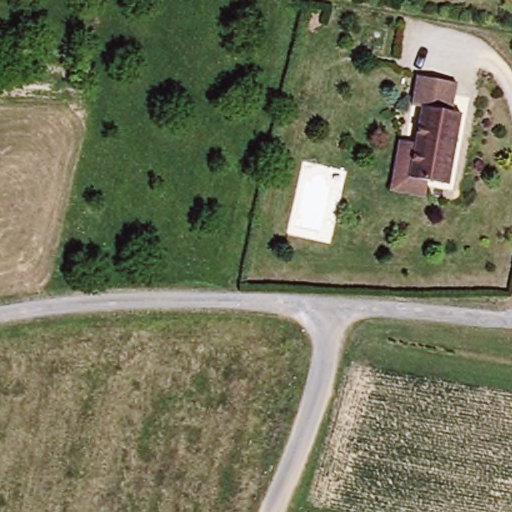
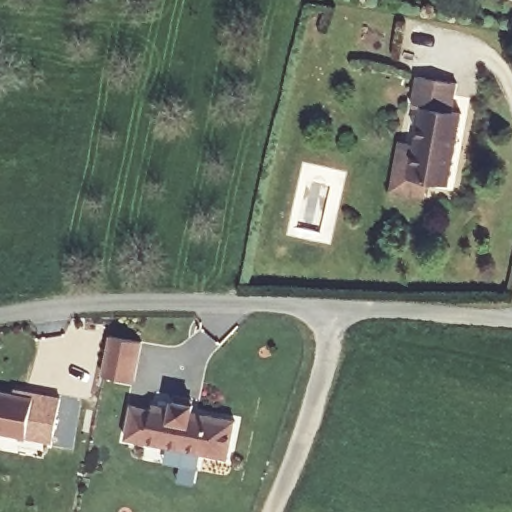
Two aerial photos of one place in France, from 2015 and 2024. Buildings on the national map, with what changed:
unchanged [(394,194),(402,146),(417,149),(424,111),(415,110),(420,80),(459,87),(454,116),(464,117),(451,189),(428,185),(426,200),(394,194)]
new [(143,340),(136,381),(103,376),(110,335),(143,340)]
new [(15,390),(33,393),(60,398),(52,442),(0,433),(0,392),(15,395),(15,390)]
new [(130,405),(152,408),(153,405),(170,408),(172,400),(195,403),(194,410),(210,413),(210,416),(236,420),(228,460),(125,438),(130,405)]

